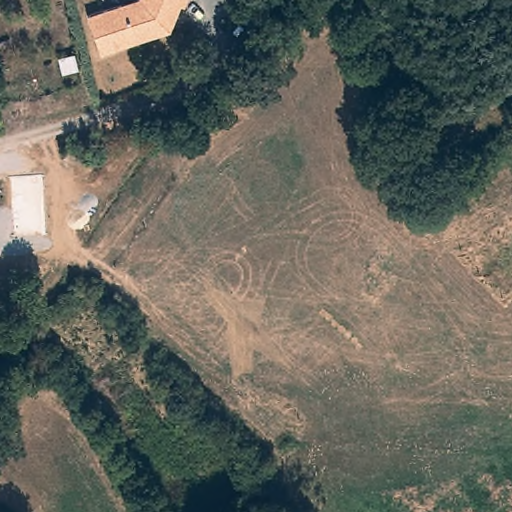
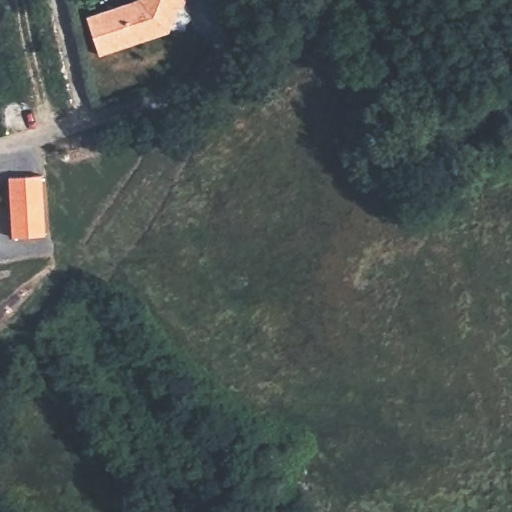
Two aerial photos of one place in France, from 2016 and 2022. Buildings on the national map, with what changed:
unchanged [(97,59),(85,20),(136,4),(138,0),(187,0),(182,12),(178,11),(178,12),(167,37),(153,42),(97,59)]
new [(16,241),(14,211),(11,181),(44,178),(46,207),(49,238),(16,241)]

